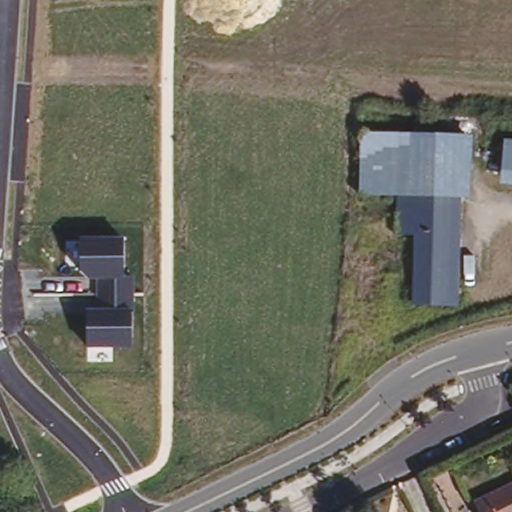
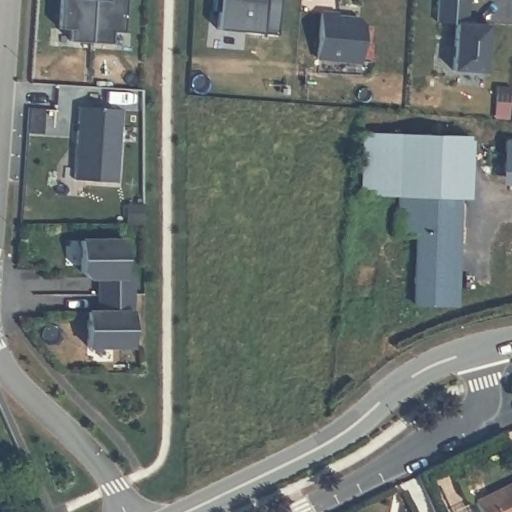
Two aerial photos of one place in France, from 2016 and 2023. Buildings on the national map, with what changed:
new [(57,0),(121,0),(120,39),(109,38),(108,50),(67,49),(68,37),(56,37),(57,0)]
new [(213,27),(215,9),(210,9),(210,0),(277,0),(275,32),(213,27)]
new [(448,63),(451,16),(432,15),(433,0),(464,0),(463,15),(485,16),(482,65),(448,63)]
new [(335,10),(334,13),(357,15),(361,20),(359,57),(315,54),(317,9),(335,10)]
new [(120,115),(117,188),(74,186),(76,113),(120,115)]
unchanged [(456,181),(404,182),(363,179),(365,129),(460,134),(456,181)]
unchanged [(502,168),(504,135),(512,135),(512,169),(502,168)]
unchanged [(456,181),(450,298),(416,297),(420,225),(402,224),(404,182),(456,181)]
unchanged [(125,237),(125,277),(134,277),(134,348),(85,348),(86,310),(96,310),(97,280),(90,280),(80,272),(80,237),(125,237)]
unchanged [(480,512),(470,492),(512,475),(512,512),(480,512)]

